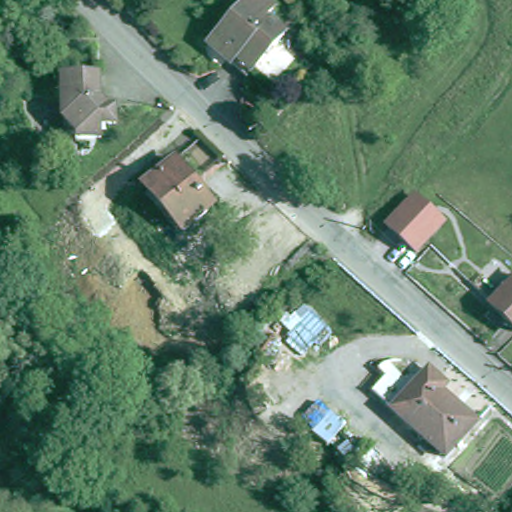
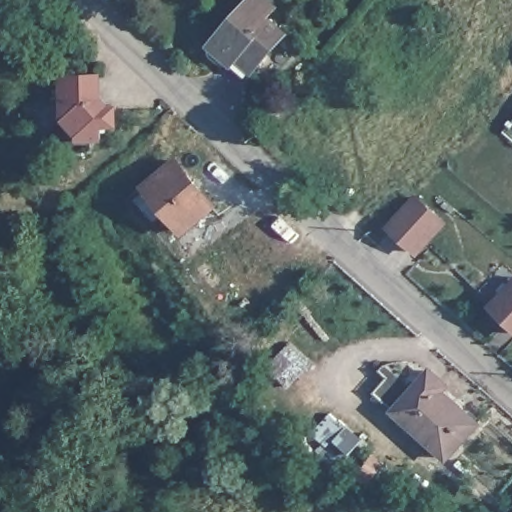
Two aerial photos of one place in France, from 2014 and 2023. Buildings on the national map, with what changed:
unchanged [(211,41),(224,26),(248,0),(274,0),(277,2),(269,12),(290,31),(260,62),(248,75),(233,61),(218,47),(211,41)]
unchanged [(59,69),(90,68),(93,104),(111,103),(111,117),(98,119),(98,131),(77,131),(77,126),(63,126),(59,69)]
unchanged [(176,159),(214,200),(183,227),(146,187),(176,159)]
unchanged [(436,221),(411,249),(383,226),(408,197),(436,221)]
unchanged [(468,221),(459,232),(444,221),(453,210),(468,221)]
unchanged [(512,286),(512,325),(493,307),(512,286)]
unchanged [(450,388),(446,394),(483,426),(451,462),(397,414),(433,372),(450,388)]
unchanged [(324,455),(309,441),(341,405),(356,418),(324,455)]

